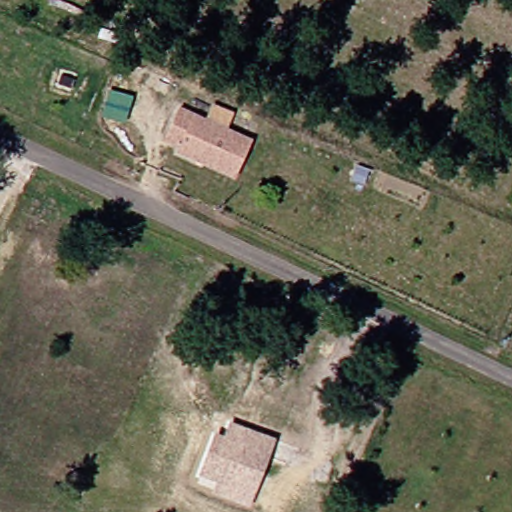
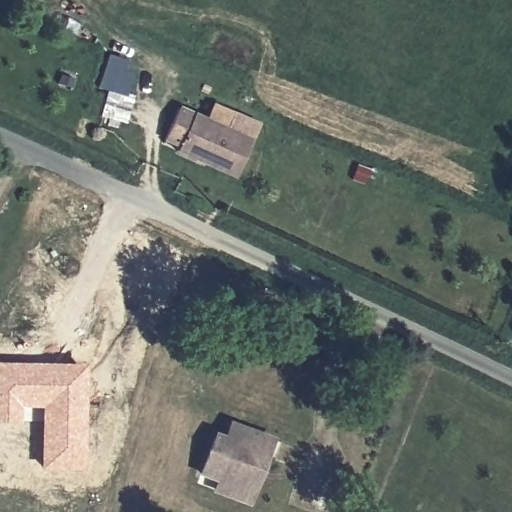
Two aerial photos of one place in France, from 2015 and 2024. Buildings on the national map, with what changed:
new [(110,91),(99,87),(108,55),(127,60),(124,70),(133,72),(127,93),(134,95),(126,124),(102,116),(110,91)]
new [(205,121),(212,103),(257,122),(248,145),(205,121)]
unchanged [(232,180),(175,150),(177,146),(162,140),(180,107),(248,145),(232,180)]
new [(40,469),(40,408),(20,407),(20,425),(0,424),(0,363),(85,364),(82,470),(40,469)]
unchanged [(275,438),(252,507),(211,493),(214,481),(199,476),(215,430),(226,435),(230,421),(275,438)]

